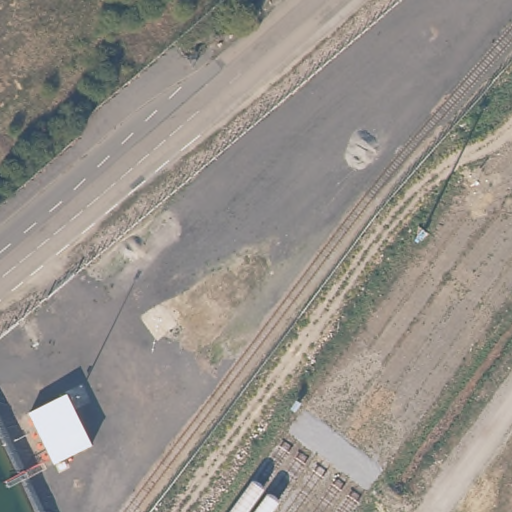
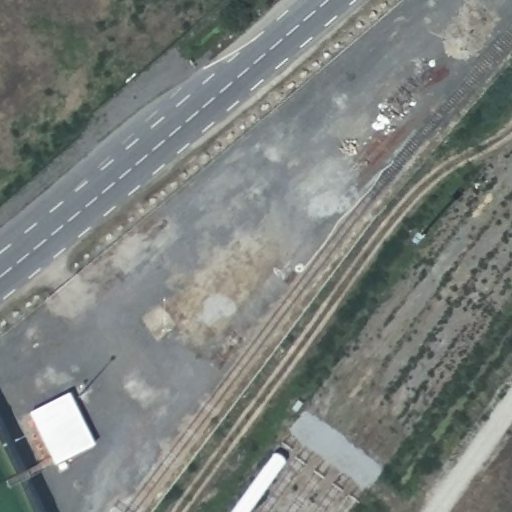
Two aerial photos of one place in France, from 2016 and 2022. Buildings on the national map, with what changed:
unchanged [(55,395),(82,445),(46,465),(19,414),(55,395)]

